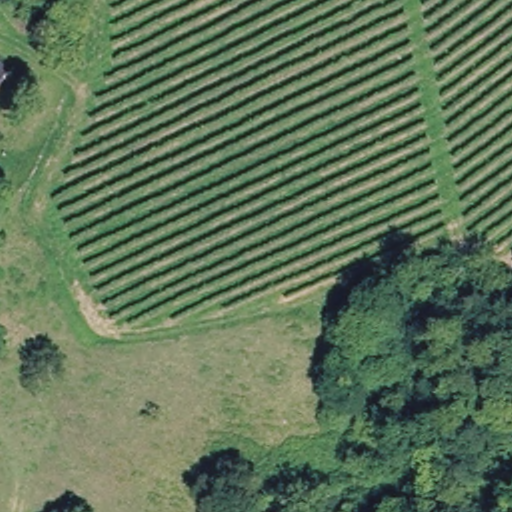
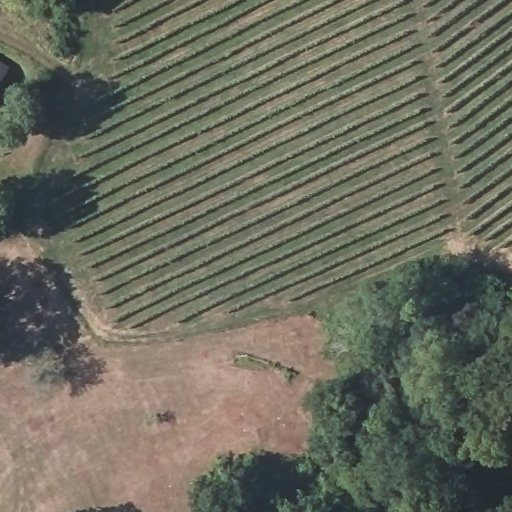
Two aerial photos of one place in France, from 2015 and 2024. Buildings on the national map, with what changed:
unchanged [(0,62),(9,66),(0,84),(0,62)]

